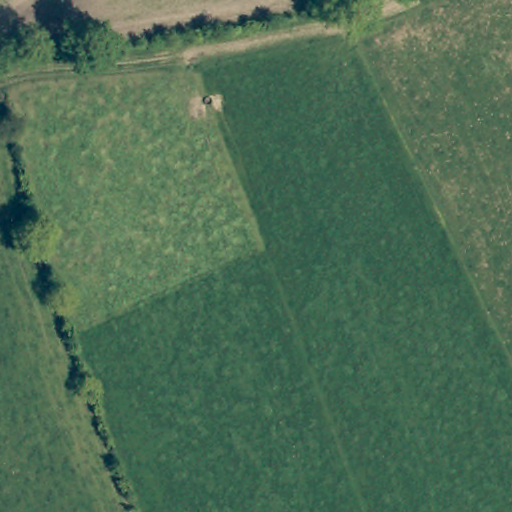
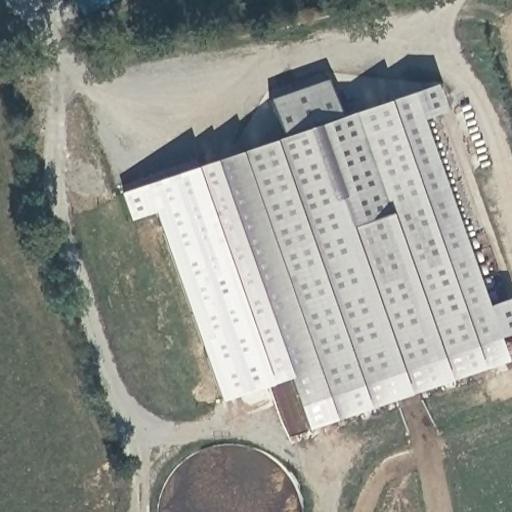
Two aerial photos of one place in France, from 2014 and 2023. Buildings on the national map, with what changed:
new [(283,138),(270,99),(327,80),(340,118),(434,85),(444,113),(420,121),(485,308),(509,298),(512,310),(512,332),(496,338),(295,407),(212,162),(283,138)]

